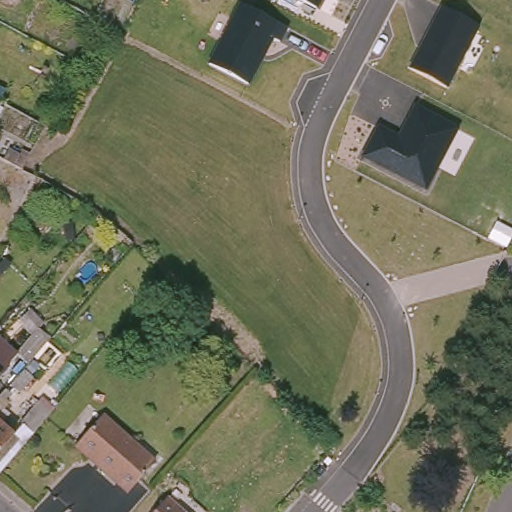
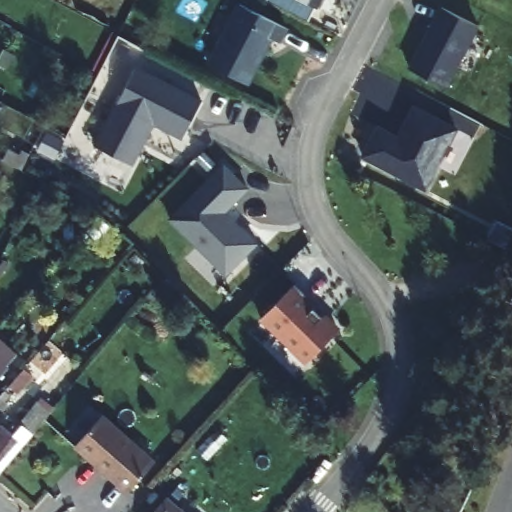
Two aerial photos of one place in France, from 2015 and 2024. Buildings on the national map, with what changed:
unchanged [(302,0),(320,0),(317,7),(302,0)]
unchanged [(250,86),(208,64),(239,6),(287,29),(280,42),(273,41),(250,86)]
unchanged [(480,27),(448,89),(408,69),(440,7),(480,27)]
new [(135,66),(202,101),(183,137),(153,122),(131,164),(95,145),(135,66)]
unchanged [(379,124),(400,135),(414,107),(458,130),(426,191),(361,159),(379,124)]
new [(170,218),(224,165),(248,189),(225,212),(257,242),(226,273),(170,218)]
new [(261,317),(295,282),(308,295),(306,298),(323,316),(324,314),(339,329),(306,362),(261,317)]
unchanged [(57,346),(35,371),(22,360),(44,336),(57,346)]
unchanged [(5,363),(0,369),(0,359),(5,363)]
unchanged [(40,382),(24,401),(16,392),(31,375),(40,382)]
unchanged [(15,402),(11,408),(15,412),(2,427),(20,444),(0,468),(0,411),(11,398),(15,402)]
unchanged [(58,420),(39,442),(27,431),(46,408),(58,420)]
unchanged [(157,470),(131,500),(79,455),(105,425),(157,470)]
unchanged [(171,512),(168,512),(170,511),(171,512)]

